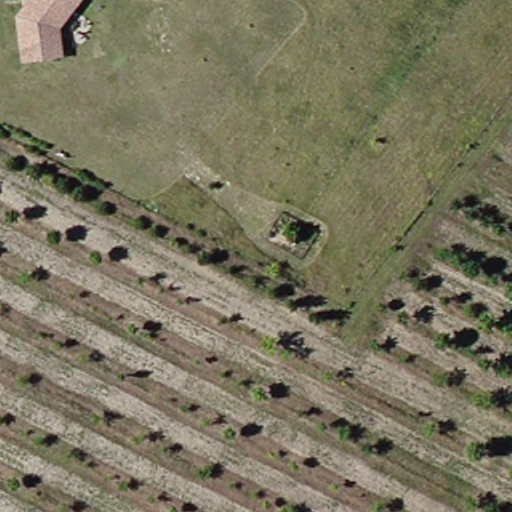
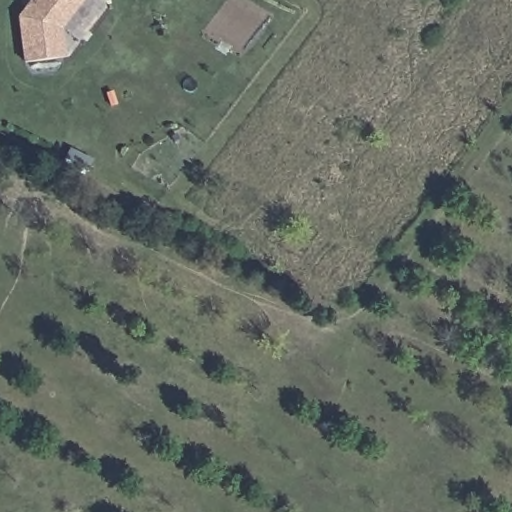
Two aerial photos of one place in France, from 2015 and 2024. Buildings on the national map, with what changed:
unchanged [(60,25),(65,52),(27,60),(19,13),(29,0),(79,0),(60,25)]

